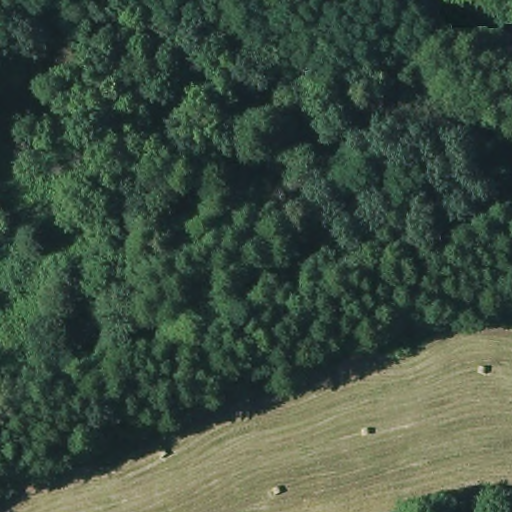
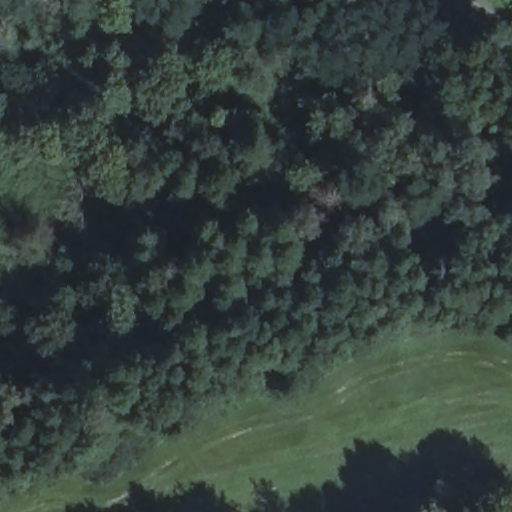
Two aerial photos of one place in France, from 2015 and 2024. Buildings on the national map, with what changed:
unchanged [(404,195),(440,187),(449,223),(412,232),(404,195)]

